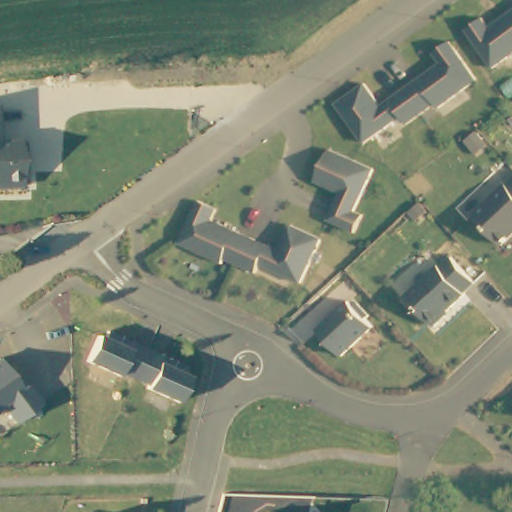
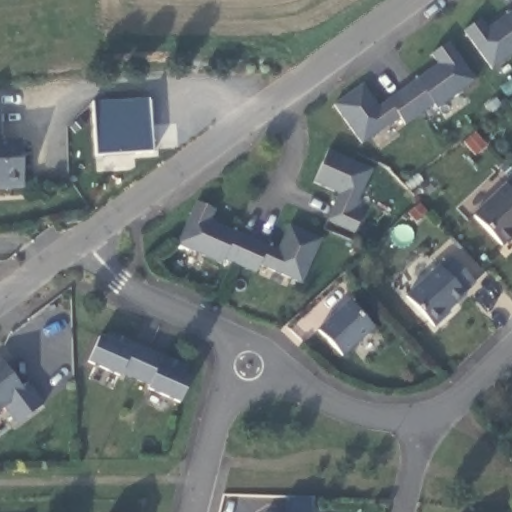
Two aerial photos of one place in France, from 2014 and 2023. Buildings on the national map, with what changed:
unchanged [(491,67),(464,29),(481,17),(488,27),(512,10),(512,53),(491,67)]
unchanged [(440,107),(437,103),(409,123),(403,115),(366,141),(338,103),(367,83),(383,106),(443,63),(436,53),(453,41),(480,80),(440,107)]
new [(149,97),(151,150),(96,153),(93,100),(149,97)]
unchanged [(4,142),(21,141),(24,187),(0,188),(0,107),(1,107),(4,142)]
unchanged [(330,222),(343,195),(318,183),(333,151),(376,172),(356,214),(365,218),(356,235),(330,222)]
unchanged [(474,215),(512,178),(512,238),(503,247),(474,215)]
unchanged [(214,208),(219,210),(214,221),(280,254),(292,229),(324,244),(302,287),(261,267),(259,271),(257,276),(226,260),(223,265),(180,244),(201,201),(214,208)]
unchanged [(409,295),(449,257),(475,286),(435,326),(409,295)]
unchanged [(318,329),(350,301),(374,328),(344,357),(318,329)]
unchanged [(148,387),(90,363),(100,334),(108,338),(110,332),(180,362),(177,370),(192,376),(182,403),(148,387)]
unchanged [(25,390),(31,386),(43,405),(16,424),(4,407),(0,410),(0,360),(1,359),(25,390)]

